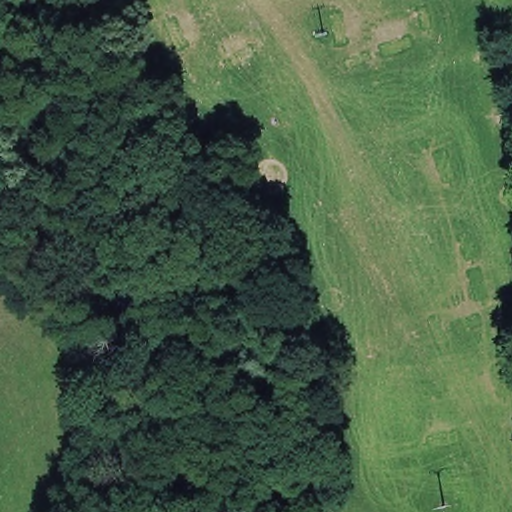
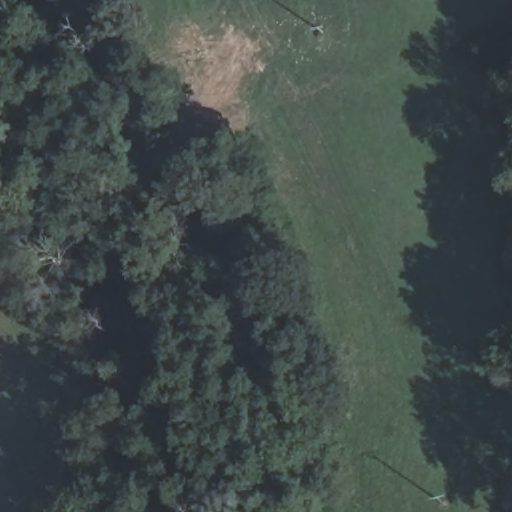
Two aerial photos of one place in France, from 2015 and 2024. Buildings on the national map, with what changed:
[]

